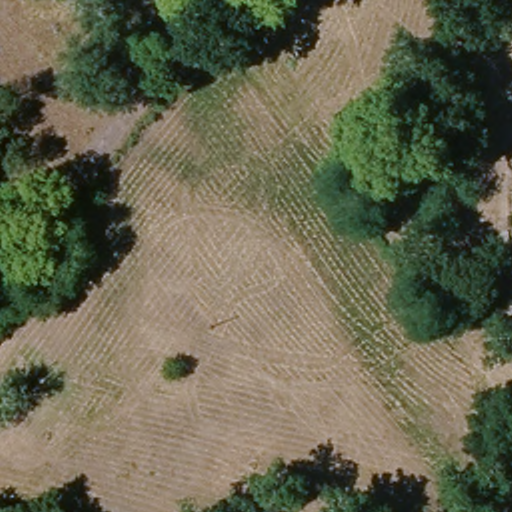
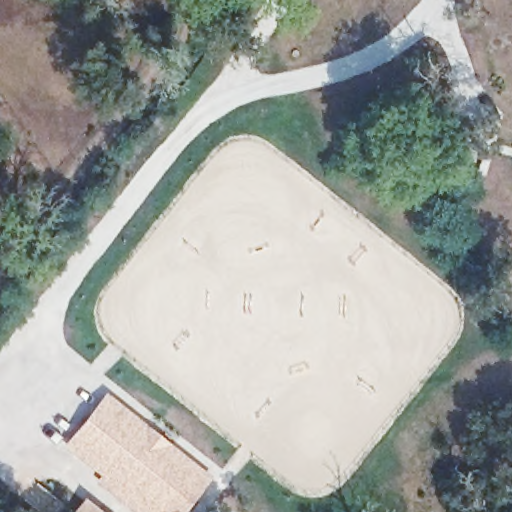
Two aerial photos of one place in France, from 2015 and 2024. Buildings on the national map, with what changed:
new [(100,476),(61,447),(105,395),(210,477),(182,512),(134,512),(95,483),(100,476)]
unchanged [(499,430),(512,418),(512,449),(499,430)]
new [(102,512),(72,512),(84,497),(102,512)]

